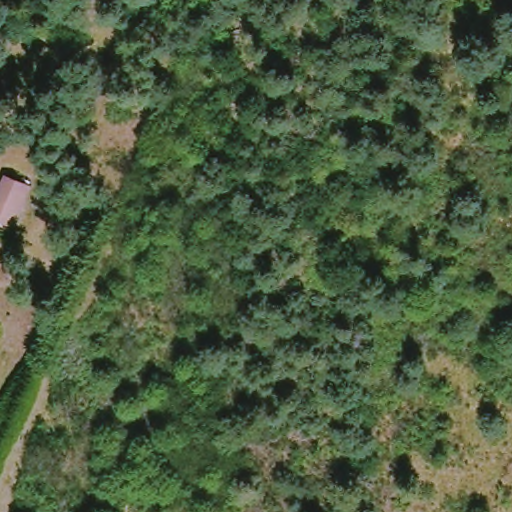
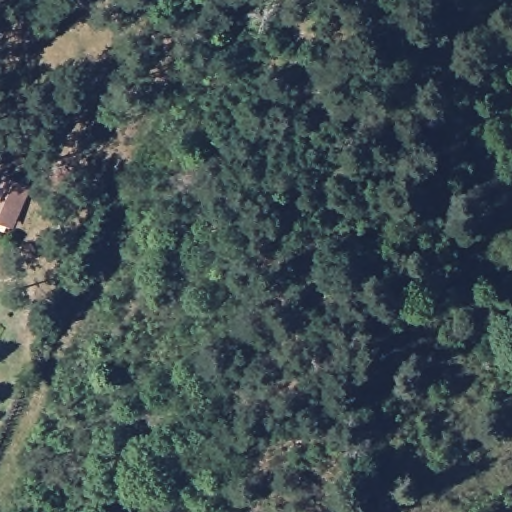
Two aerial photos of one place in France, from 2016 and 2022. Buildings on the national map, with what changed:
unchanged [(35,190),(17,232),(0,225),(0,193),(7,179),(35,190)]

